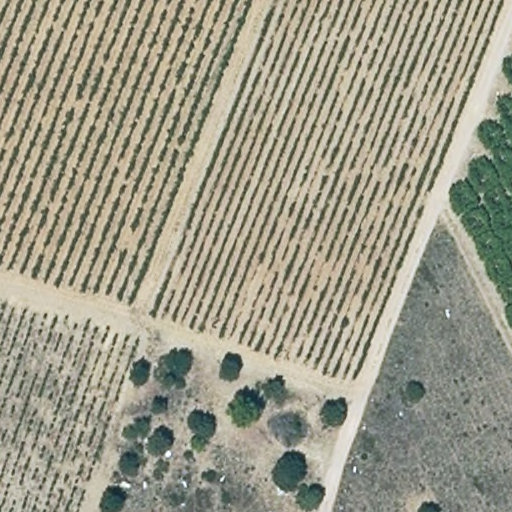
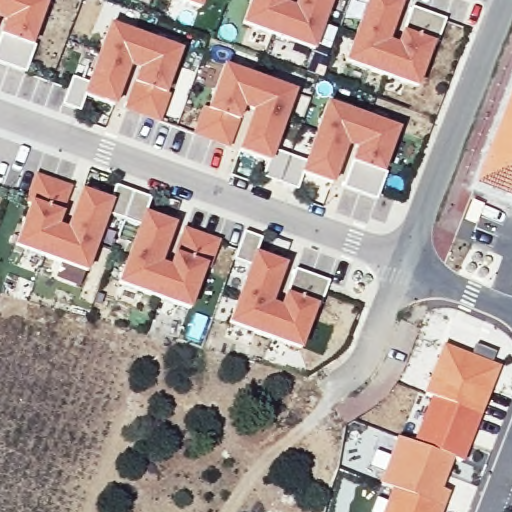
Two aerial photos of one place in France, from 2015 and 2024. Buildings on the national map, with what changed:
new [(23,73),(0,65),(0,26),(1,23),(0,23),(0,0),(39,0),(45,3),(29,46),(33,47),(23,73)]
new [(197,10),(171,0),(201,0),(197,10)]
new [(283,5),(292,8),(294,0),(330,0),(312,50),(240,26),(248,0),(284,0),(283,5)]
new [(400,3),(387,43),(395,45),(400,34),(409,8),(443,20),(435,44),(432,43),(415,88),(343,63),(365,4),(354,0),(392,0),(400,3)]
new [(158,123),(122,111),(130,86),(135,72),(127,69),(113,108),(82,97),(77,112),(60,106),(70,78),(85,82),(107,25),(180,50),(163,94),(169,95),(158,123)]
new [(385,174),(377,201),(340,189),(347,162),(352,151),(345,148),(330,186),(299,176),(293,189),(262,177),(267,164),(237,153),(250,112),(241,110),(237,122),(227,148),(192,137),(202,107),(205,109),(220,66),(293,92),(272,151),(303,161),(324,103),(397,128),(380,174),(385,174)]
new [(512,76),(512,204),(470,186),(501,104),(512,76)]
new [(60,214),(57,226),(64,229),(78,191),(107,200),(112,186),(148,198),(143,213),(173,222),(158,265),(167,267),(172,255),(180,227),(219,240),(210,267),(204,266),(188,311),(115,285),(136,225),(106,215),(85,272),(12,247),(27,204),(23,203),(32,174),(70,186),(60,214)]
new [(253,254),(284,265),(270,304),(278,306),(282,294),(292,269),(327,281),(317,307),(314,307),(297,350),(225,325),(246,266),(231,260),(242,232),(259,239),(253,254)]
new [(473,345),(493,353),(488,366),(468,358),(473,345)]
new [(495,368),(477,416),(424,395),(431,377),(435,366),(442,348),(495,368)]
new [(432,398),(477,416),(459,462),(414,444),(432,398)]
new [(445,457),(432,487),(445,492),(439,508),(380,485),(398,438),(445,457)]
new [(437,489),(432,487),(445,457),(450,458),(437,489)]
new [(441,509),(440,512),(382,512),(391,489),(441,509)]

